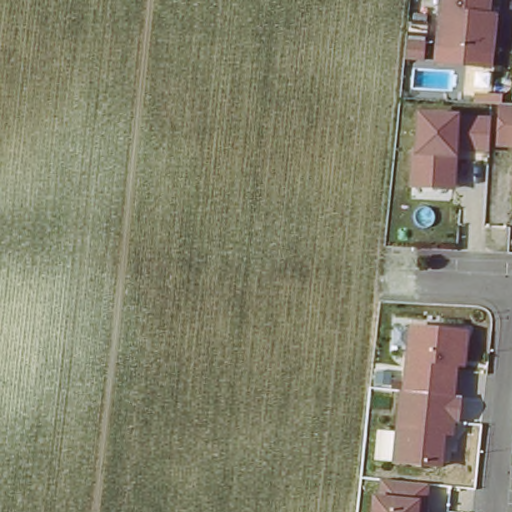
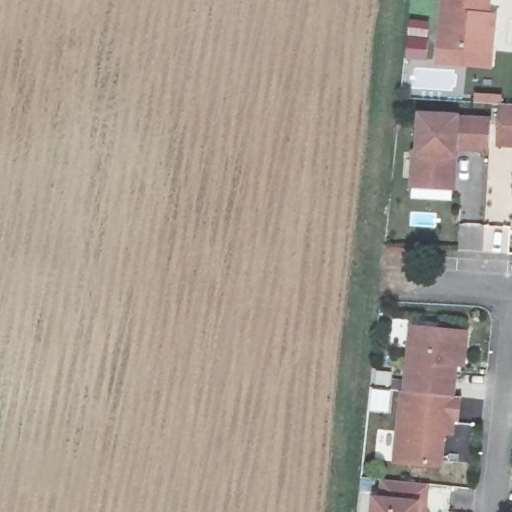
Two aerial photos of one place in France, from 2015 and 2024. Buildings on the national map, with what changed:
unchanged [(496,14),(492,51),(437,45),(442,0),(489,0),(488,12),(496,14)]
unchanged [(512,105),(512,147),(497,147),(498,104),(512,105)]
unchanged [(460,115),(489,117),(487,151),(459,149),(455,190),(411,187),(413,157),(420,112),(460,115)]
unchanged [(468,331),(465,366),(458,366),(453,394),(459,395),(455,435),(446,435),(442,468),(395,462),(404,393),(410,326),(468,331)]
unchanged [(428,484),(426,512),(372,512),(373,497),(383,497),(382,480),(428,484)]

